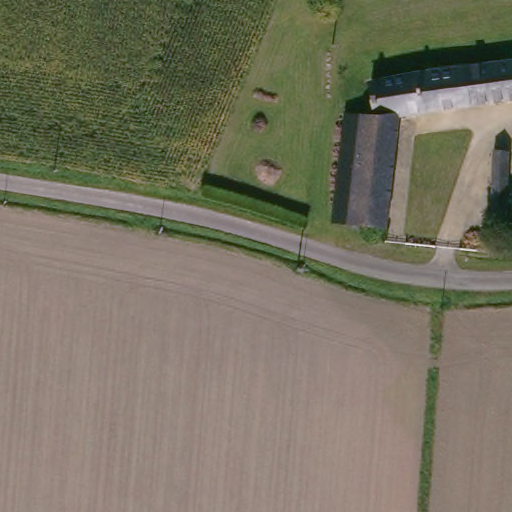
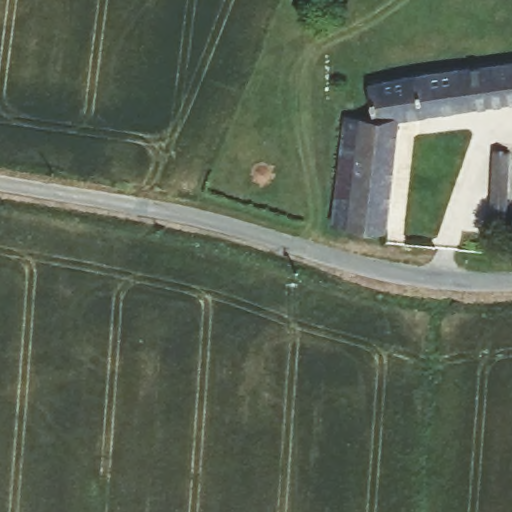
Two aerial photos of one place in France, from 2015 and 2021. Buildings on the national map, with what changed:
unchanged [(369,84),(402,75),(512,61),(512,101),(400,117),(380,116),(369,84)]
unchanged [(362,114),(349,225),(332,222),(347,112),(362,114)]
unchanged [(400,117),(387,230),(349,225),(362,114),(380,116),(400,117)]
unchanged [(506,229),(491,230),(495,151),(508,150),(506,229)]

